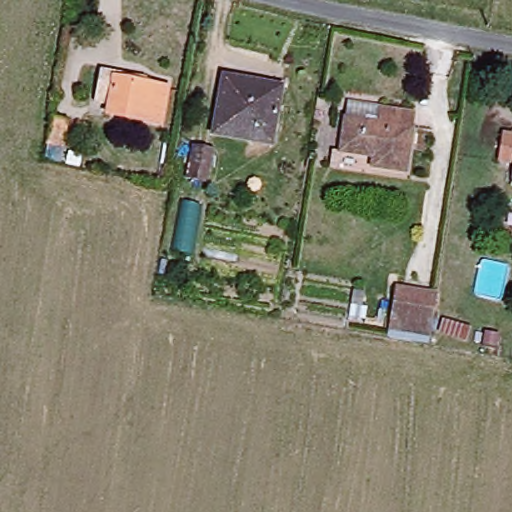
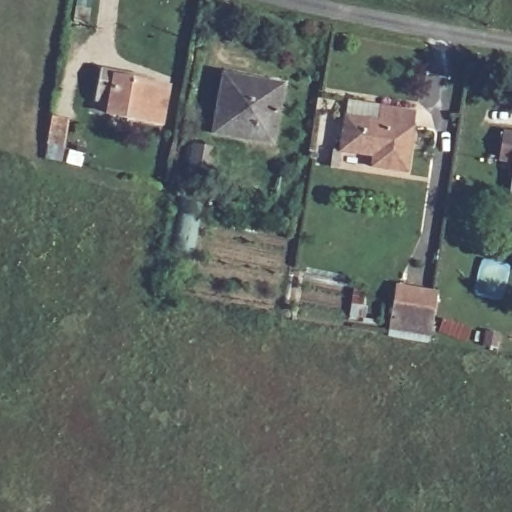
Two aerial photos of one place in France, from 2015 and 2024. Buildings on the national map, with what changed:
unchanged [(116,120),(119,103),(104,100),(109,72),(144,78),(143,86),(174,91),(168,129),(116,120)]
unchanged [(210,134),(220,78),(282,89),(272,145),(210,134)]
unchanged [(380,122),(383,109),(419,115),(407,175),(372,168),(374,154),(342,148),(348,116),(380,122)]
unchanged [(46,147),(51,119),(68,122),(63,150),(46,147)]
unchanged [(502,156),(507,131),(512,132),(512,158),(502,156)]
unchanged [(224,151),(218,181),(190,176),(196,146),(224,151)]
unchanged [(437,296),(433,323),(388,316),(393,290),(437,296)]

